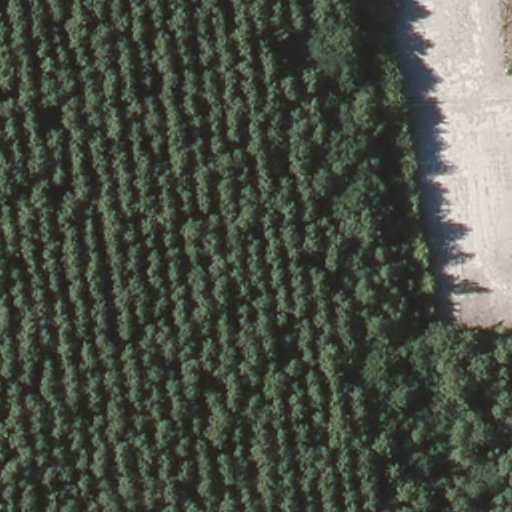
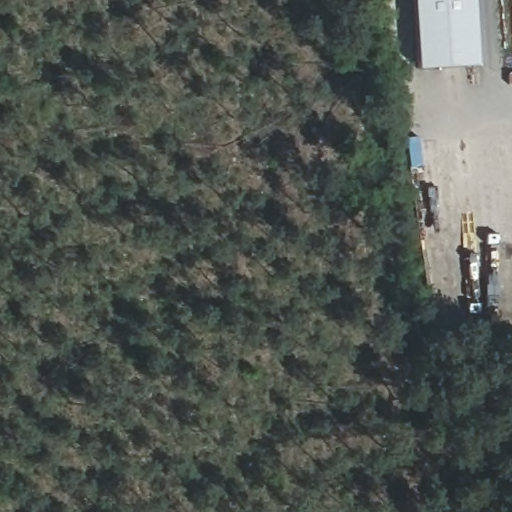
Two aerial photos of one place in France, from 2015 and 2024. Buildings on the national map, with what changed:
new [(477,64),(417,66),(414,0),(473,0),(477,64)]

